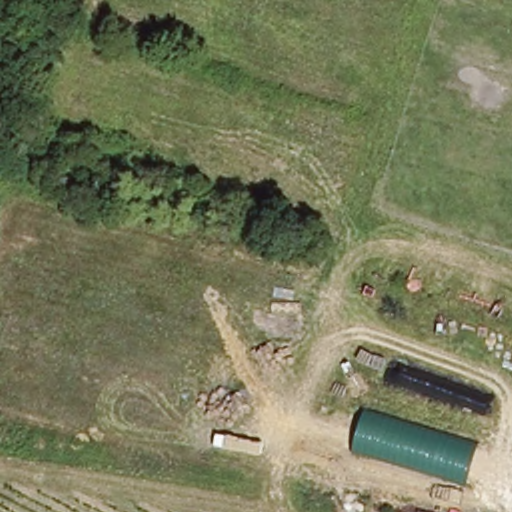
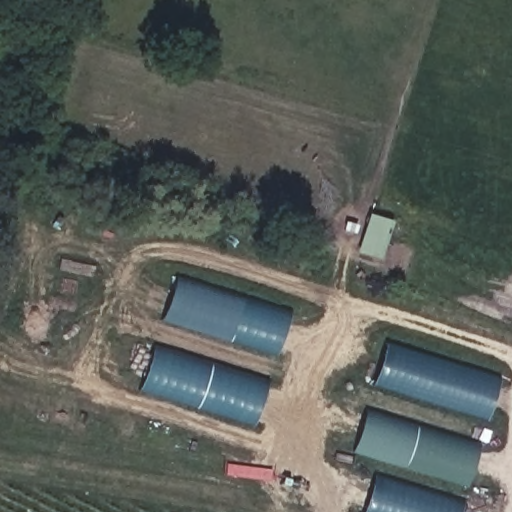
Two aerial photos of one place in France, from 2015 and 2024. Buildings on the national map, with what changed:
new [(369,212),(394,220),(382,258),(357,251),(369,212)]
new [(277,352),(161,318),(174,277),(289,312),(277,352)]
new [(488,418),(373,382),(385,342),(500,379),(488,418)]
new [(255,422),(140,388),(153,347),(268,382),(255,422)]
new [(468,483),(352,450),(364,410),(479,443),(468,483)]
new [(458,512),(361,512),(372,474),(461,502),(458,512)]

